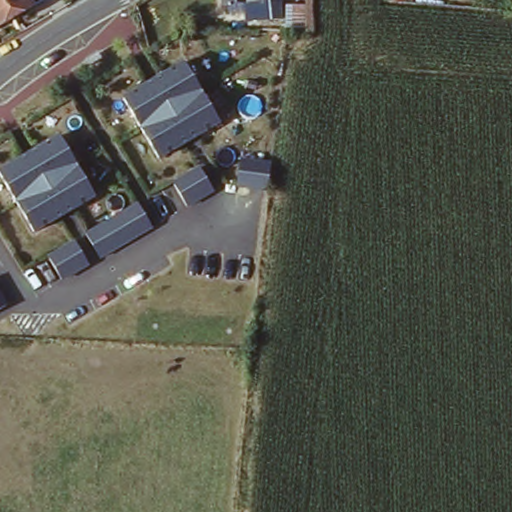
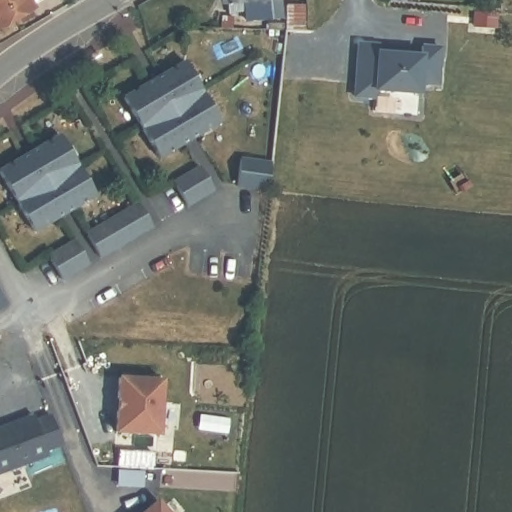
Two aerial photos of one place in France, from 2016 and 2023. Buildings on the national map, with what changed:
unchanged [(10,0),(22,20),(0,34),(0,0),(10,0)]
unchanged [(22,20),(10,0),(33,0),(38,10),(22,20)]
unchanged [(218,0),(274,0),(274,3),(248,2),(247,17),(210,15),(211,7),(218,7),(218,0)]
unchanged [(274,20),(274,3),(274,0),(298,0),(297,21),(274,20)]
new [(422,55),(422,44),(442,45),(438,85),(420,84),(420,95),(371,93),(370,100),(351,99),(356,39),(378,40),(377,52),(422,55)]
unchanged [(187,63),(221,122),(158,159),(125,98),(187,63)]
unchanged [(64,136),(97,197),(35,235),(0,172),(64,136)]
unchanged [(241,160),(272,163),(269,189),(237,185),(241,160)]
unchanged [(202,170),(215,193),(188,210),(175,184),(202,170)]
unchanged [(140,204),(153,226),(102,256),(89,236),(140,204)]
unchanged [(75,241),(89,265),(61,280),(50,256),(75,241)]
unchanged [(9,305),(0,309),(0,289),(9,305)]
new [(162,437),(120,436),(121,417),(125,418),(126,401),(121,400),(122,384),(164,385),(162,437)]
new [(36,418),(39,425),(54,419),(65,447),(48,452),(51,457),(1,474),(0,471),(0,432),(36,418)]
new [(170,512),(141,512),(157,498),(170,512)]

